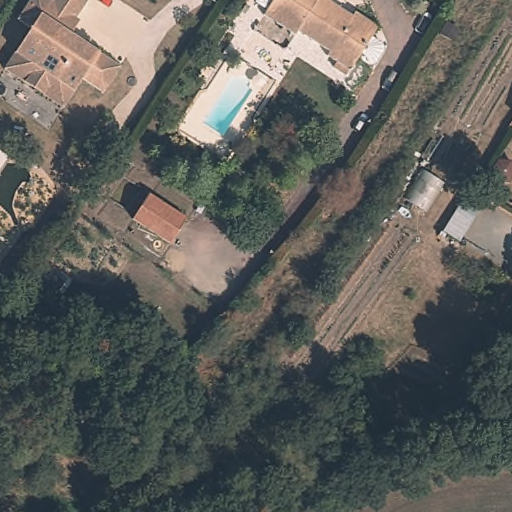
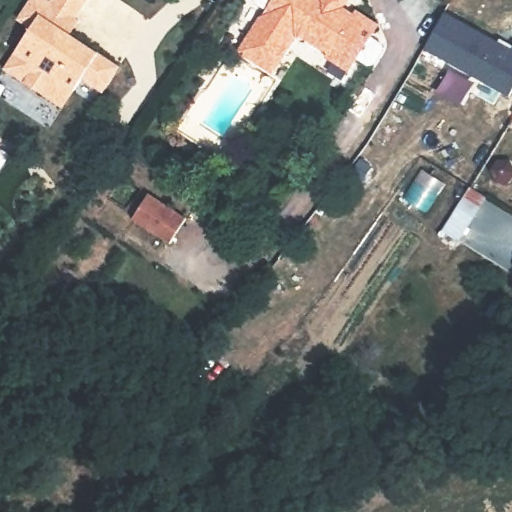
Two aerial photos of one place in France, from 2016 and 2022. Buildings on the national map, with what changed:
unchanged [(16,14),(27,0),(48,0),(49,0),(94,0),(77,22),(81,25),(72,37),(120,74),(102,96),(82,81),(74,92),(12,45),(29,24),(16,14)]
unchanged [(270,0),(271,0),(336,0),(354,11),(357,7),(377,20),(370,31),(378,37),(379,42),(370,56),(365,59),(355,52),(347,65),(346,65),(343,70),(333,63),(336,58),(327,51),(330,47),(305,31),(301,35),(276,16),(280,12),(271,5),(270,0)]
new [(446,11),(512,49),(512,92),(510,97),(425,50),(446,11)]
unchanged [(74,92),(62,107),(1,61),(12,45),(74,92)]
new [(470,188),(486,198),(459,241),(443,231),(470,188)]
unchanged [(130,214),(147,190),(184,217),(169,240),(130,214)]

